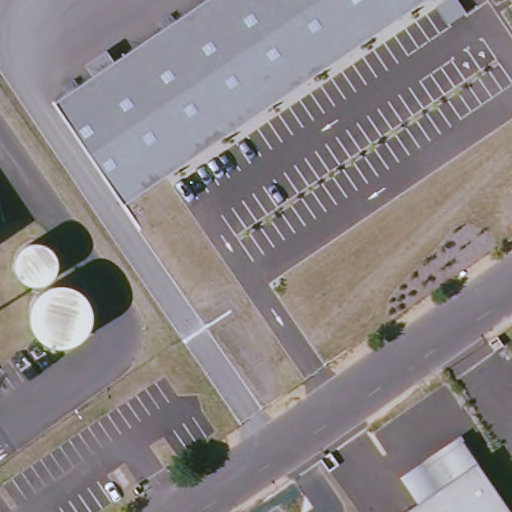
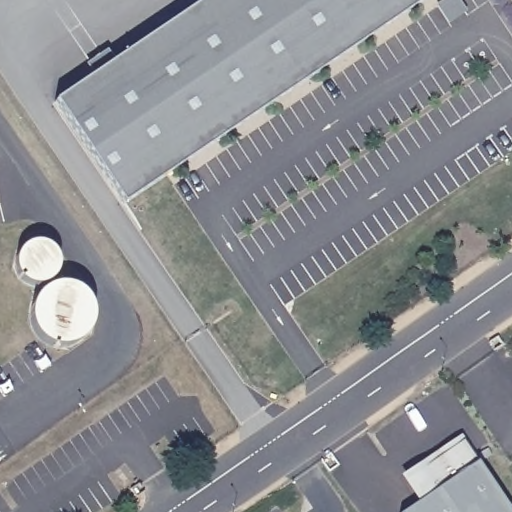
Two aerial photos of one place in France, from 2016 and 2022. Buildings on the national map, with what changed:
unchanged [(123,200),(55,98),(200,0),(418,0),(123,200)]
unchanged [(39,242),(47,246),(52,251),(55,261),(55,270),(49,279),(38,285),(28,285),(21,282),(15,275),(12,268),(12,259),(15,250),(24,244),(33,242),(39,242)]
unchanged [(61,283),(67,284),(72,286),(78,289),(82,292),(85,296),(87,301),(90,305),(90,310),(90,314),(90,319),(89,324),(87,330),(84,334),(80,339),(75,342),(70,345),(64,346),(57,347),(50,346),(45,343),(40,341),(36,338),(32,334),(30,328),(27,323),(27,317),(27,311),(27,307),(29,302),(31,298),(33,295),(37,291),(41,288),(45,285),(50,284),(57,283),(61,283)]
unchanged [(413,512),(425,502),(422,497),(420,490),(420,484),(423,476),(427,471),(432,466),(462,446),(508,512),(413,512)]

